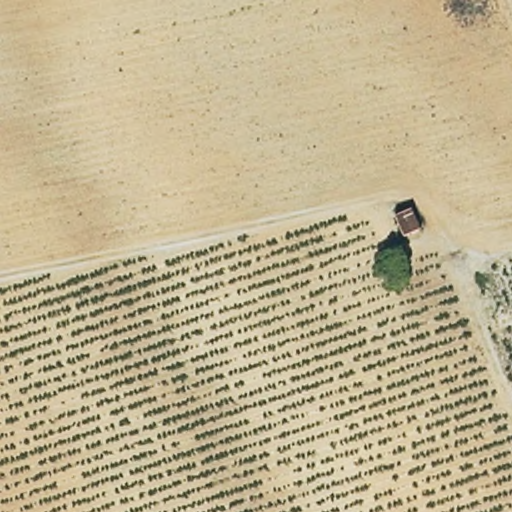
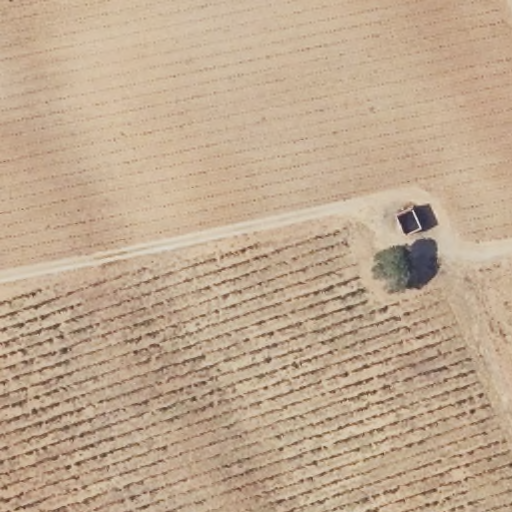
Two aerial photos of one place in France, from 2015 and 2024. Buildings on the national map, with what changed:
unchanged [(410,201),(419,222),(401,228),(392,209),(410,201)]

